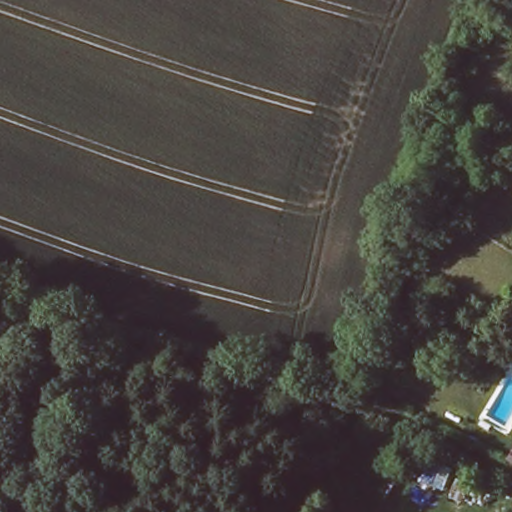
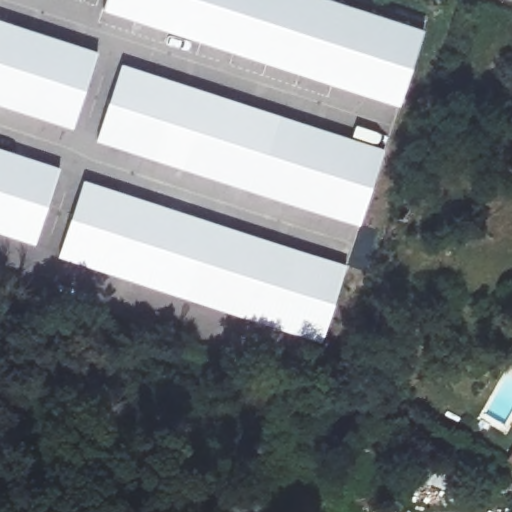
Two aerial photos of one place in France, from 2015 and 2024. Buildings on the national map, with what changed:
new [(107,0),(338,0),(424,28),(400,105),(104,9),(107,0)]
new [(98,51),(74,129),(0,105),(0,19),(98,51)]
new [(122,64),(385,150),(360,226),(97,140),(122,64)]
new [(61,166),(36,245),(0,234),(0,147),(61,166)]
new [(84,180),(348,265),(323,341),(60,256),(84,180)]
unchanged [(508,481),(512,483),(512,495),(503,490),(508,481)]

